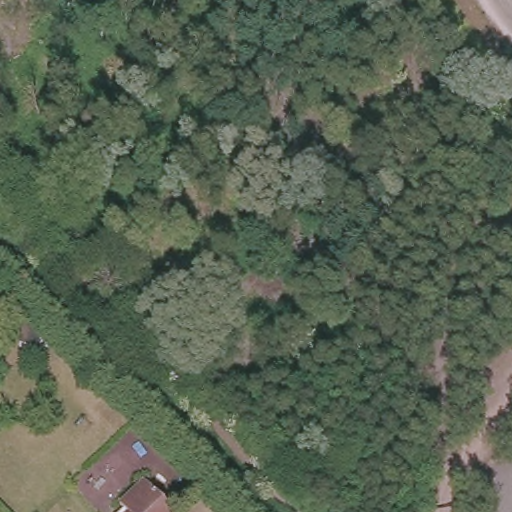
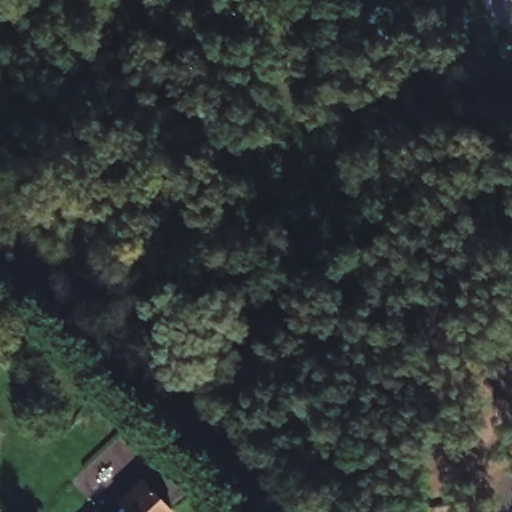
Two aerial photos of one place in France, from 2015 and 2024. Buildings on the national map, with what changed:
unchanged [(164,512),(121,512),(119,510),(143,489),(164,512)]

